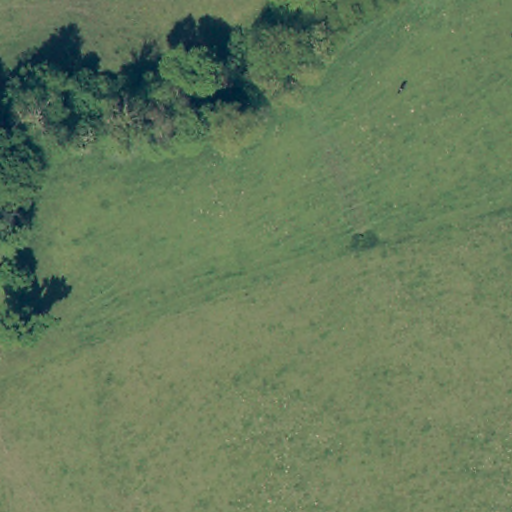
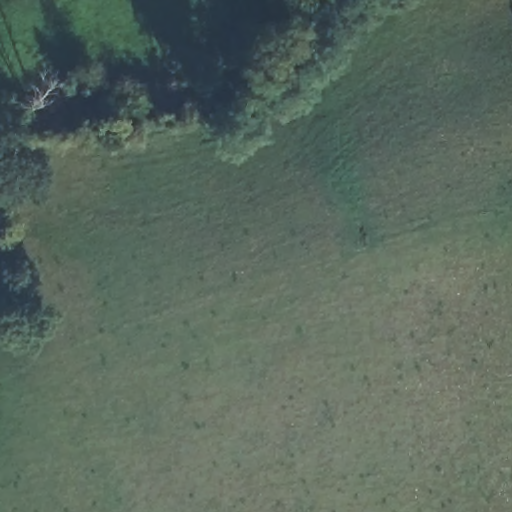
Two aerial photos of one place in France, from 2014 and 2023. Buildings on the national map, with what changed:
[]

